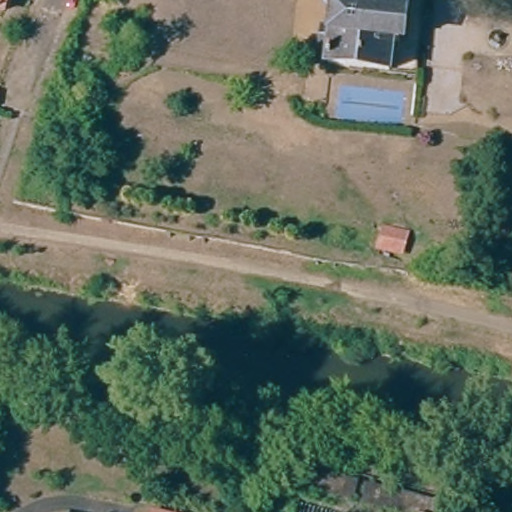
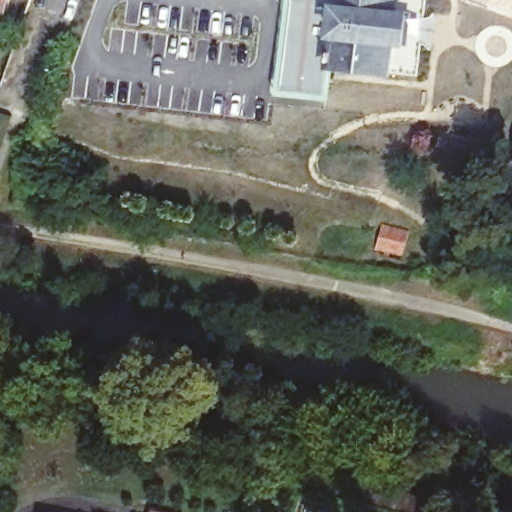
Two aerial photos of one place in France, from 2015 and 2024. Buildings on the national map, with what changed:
unchanged [(9,10),(0,7),(0,0),(12,0),(9,10)]
new [(337,5),(343,5),(342,25),(332,25),(329,60),(336,60),(330,100),(278,95),(286,0),(332,0),(337,5)]
unchanged [(332,25),(342,25),(343,5),(337,5),(332,0),(404,0),(403,7),(411,8),(409,38),(400,37),(397,67),(329,60),(332,25)]
new [(466,0),(512,0),(512,16),(466,0)]
unchanged [(412,229),(403,262),(378,256),(387,221),(412,229)]

